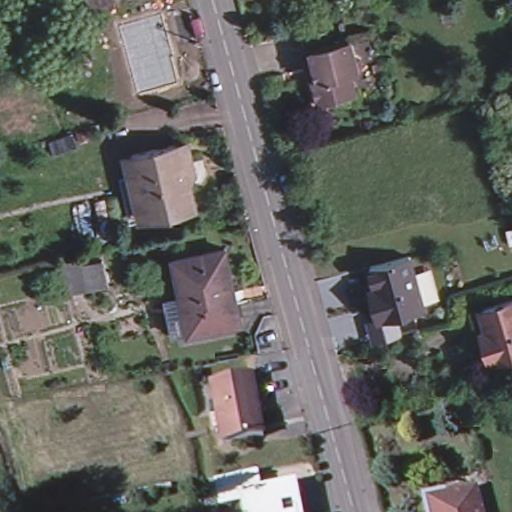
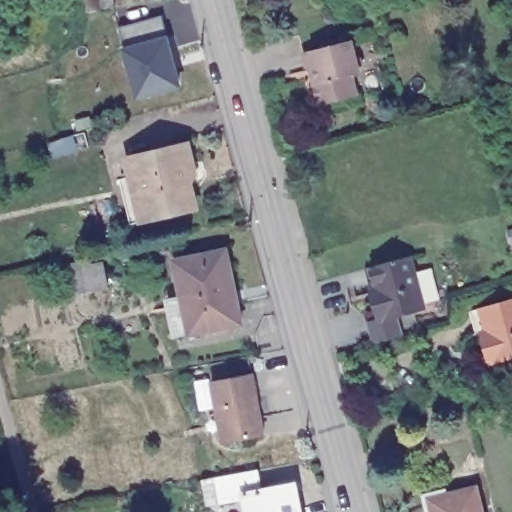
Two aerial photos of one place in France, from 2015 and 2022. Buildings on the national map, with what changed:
unchanged [(112,0),(112,2),(92,6),(91,0),(112,0)]
new [(168,34),(183,85),(135,100),(120,48),(124,47),(118,27),(162,16),(168,34)]
unchanged [(348,42),(352,59),(356,58),(358,67),(355,69),(357,74),(347,76),(352,97),(315,106),(306,68),(303,69),(300,54),(348,42)]
unchanged [(127,184),(137,182),(132,162),(190,150),(194,168),(203,166),(205,174),(202,176),(203,180),(198,187),(191,189),(196,213),(173,218),(173,214),(145,220),(136,222),(127,184)]
unchanged [(187,298),(178,262),(232,251),(247,323),(194,334),(194,332),(180,335),(172,301),(187,298)]
unchanged [(62,260),(80,256),(81,258),(102,254),(107,281),(69,289),(62,260)]
unchanged [(363,300),(370,298),(362,267),(402,256),(405,271),(420,268),(430,305),(416,309),(369,322),(363,300)]
unchanged [(475,333),(482,331),(473,301),(512,292),(512,346),(482,354),(475,333)]
unchanged [(483,362),(482,354),(512,346),(512,358),(485,365),(483,362)]
unchanged [(211,379),(251,371),(262,431),(222,439),(211,379)]
unchanged [(220,499),(216,474),(257,466),(262,487),(295,480),(301,512),(247,512),(244,494),(220,499)]
unchanged [(425,496),(448,490),(452,497),(477,490),(483,512),(429,512),(425,496)]

